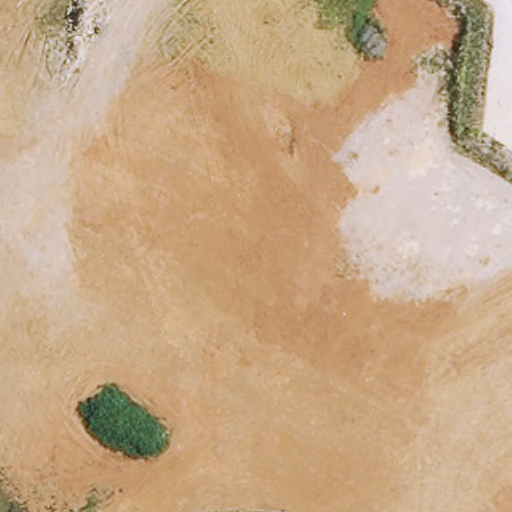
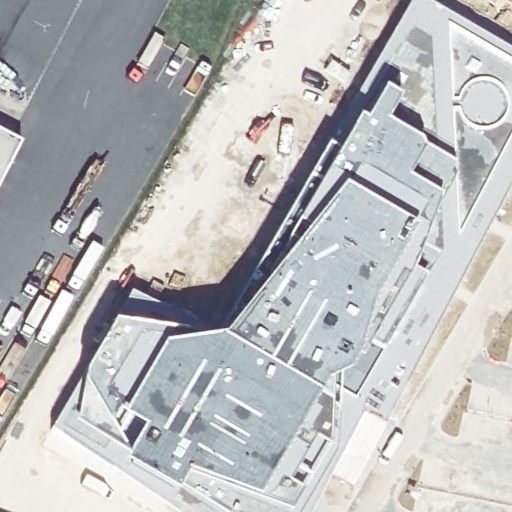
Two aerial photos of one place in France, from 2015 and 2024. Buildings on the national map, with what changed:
new [(424,0),(480,31),(512,51),(512,179),(496,209),(479,201),(478,203),(474,201),(501,145),(469,131),(459,122),(454,109),(449,109),(452,155),(445,152),(414,133),(419,120),(430,121),(431,116),(428,59),(419,56),(426,43),(411,34),(386,69),(375,61),(412,0),(424,0)]
new [(299,193),(308,198),(354,121),(361,124),(379,93),(406,106),(411,110),(420,116),(419,120),(397,107),(386,125),(456,170),(451,183),(439,202),(425,232),(363,197),(361,199),(346,191),(344,194),(339,191),(302,236),(283,222),(299,193)]
new [(0,173),(0,145),(10,151),(0,173)]
new [(283,260),(286,256),(302,236),(339,191),(344,194),(346,191),(361,199),(363,197),(425,232),(410,273),(402,288),(399,286),(374,331),(366,352),(356,369),(322,391),(316,401),(254,367),(218,344),(283,260)]
new [(374,331),(399,286),(402,288),(410,273),(422,280),(405,312),(378,357),(366,352),(374,331)]
new [(129,292),(153,304),(151,309),(148,308),(143,317),(141,317),(141,319),(131,319),(130,327),(181,337),(181,342),(181,345),(178,345),(158,348),(156,354),(114,424),(109,430),(88,404),(73,395),(111,323),(129,292)]
new [(156,354),(158,348),(178,345),(181,345),(181,342),(218,344),(254,367),(316,401),(253,506),(183,484),(173,502),(116,470),(125,453),(118,443),(126,431),(114,424),(156,354)]
new [(73,395),(88,404),(109,430),(114,424),(126,431),(118,443),(125,453),(116,470),(50,430),(73,395)]

